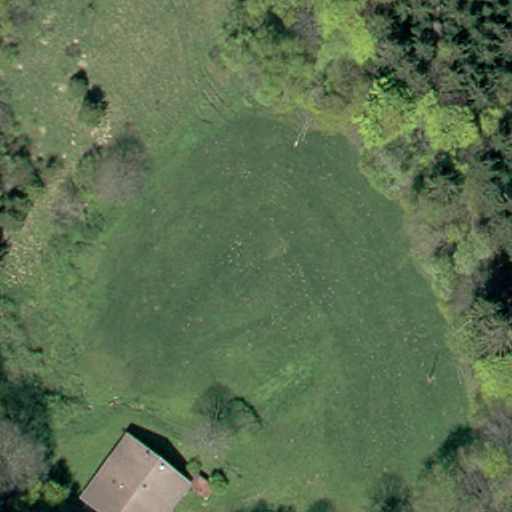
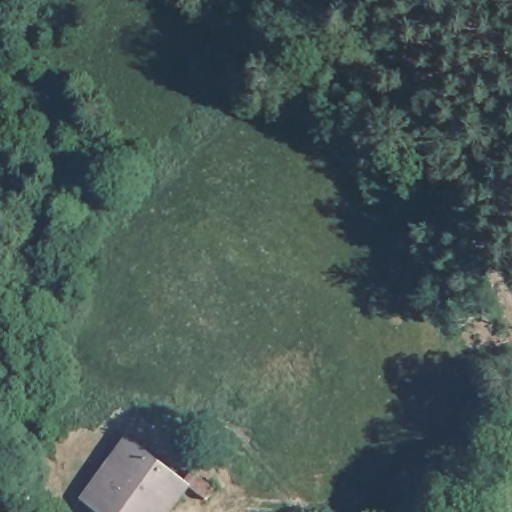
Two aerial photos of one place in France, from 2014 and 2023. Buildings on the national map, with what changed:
unchanged [(116,438),(147,461),(162,472),(172,466),(196,483),(185,496),(173,490),(154,512),(99,512),(72,491),(116,438)]

